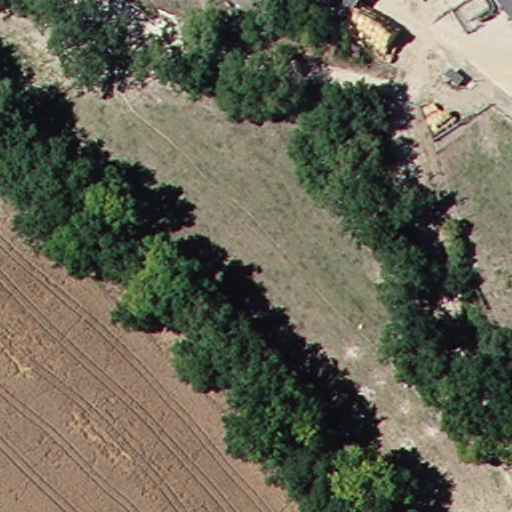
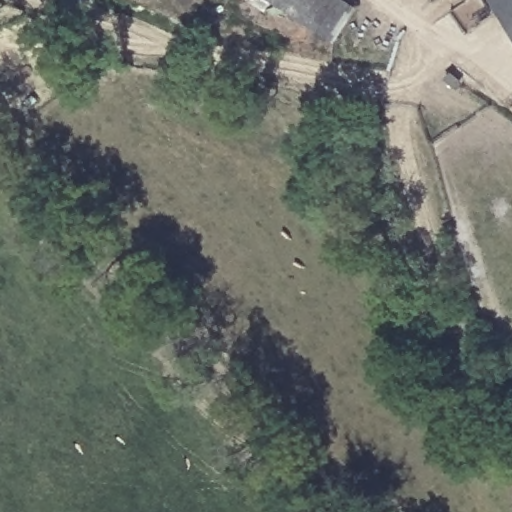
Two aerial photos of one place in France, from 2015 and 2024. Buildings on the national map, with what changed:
unchanged [(341,40),(284,0),(358,0),(367,6),(341,40)]
unchanged [(502,0),(512,0),(512,12),(502,0)]

